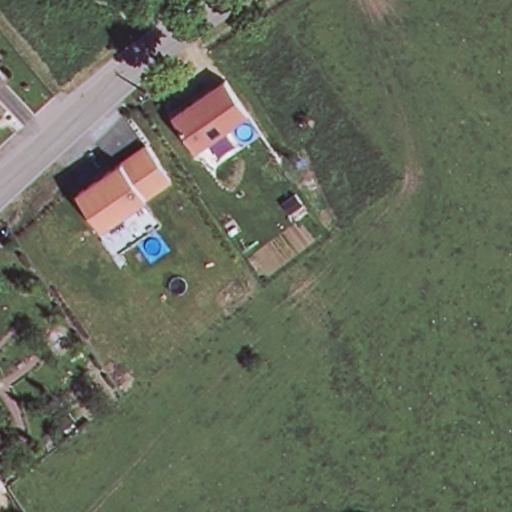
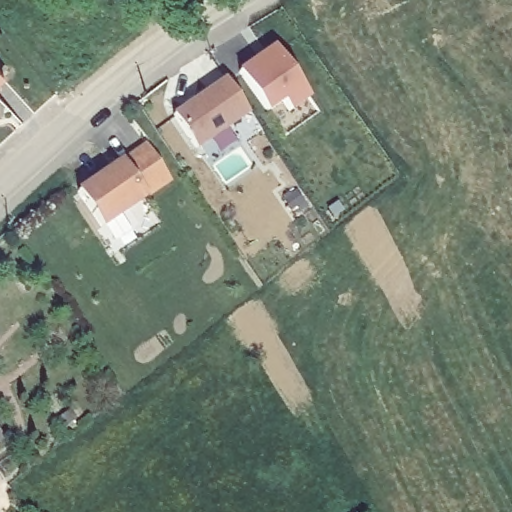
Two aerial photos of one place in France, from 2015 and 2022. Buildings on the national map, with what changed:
new [(291,110),(285,100),(267,111),(239,70),(275,45),(310,99),(291,110)]
unchanged [(0,86),(0,70),(8,79),(0,86)]
unchanged [(241,96),(252,113),(234,125),(200,149),(177,116),(229,79),(241,96)]
unchanged [(175,180),(106,227),(82,192),(101,179),(108,174),(151,144),(175,180)]

